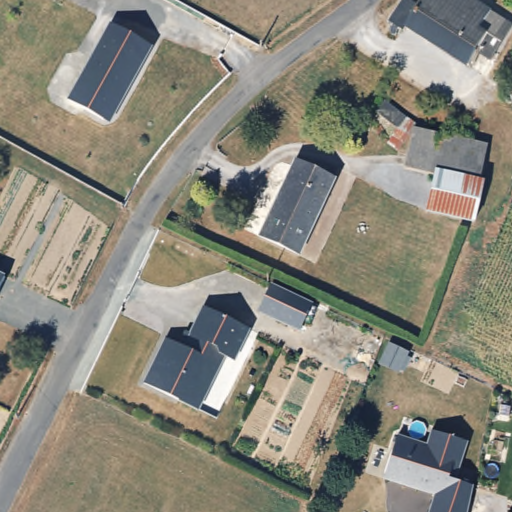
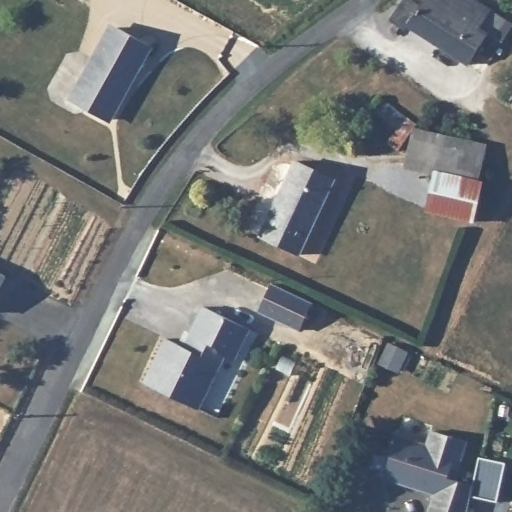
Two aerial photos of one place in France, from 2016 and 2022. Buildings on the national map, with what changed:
unchanged [(485,28),(493,34),(461,72),(402,24),(395,33),(382,21),(403,0),(405,0),(408,3),(416,9),(424,0),(494,0),(502,8),(485,28)]
unchanged [(102,119),(67,100),(85,69),(90,71),(115,26),(150,46),(112,114),(108,122),(102,119)]
unchanged [(413,125),(398,149),(386,140),(391,131),(368,116),(378,102),(413,125)]
unchanged [(489,152),(480,190),(434,179),(403,171),(409,137),(411,132),(489,152)]
unchanged [(297,166),(336,188),(296,261),(257,240),(297,166)]
unchanged [(480,190),(483,191),(474,227),(470,226),(426,215),(434,179),(480,190)]
unchanged [(2,279),(0,284),(0,278),(2,279)]
unchanged [(308,304),(295,330),(252,310),(267,283),(308,304)]
unchanged [(177,405),(141,388),(164,342),(182,350),(201,309),(248,332),(233,363),(222,359),(207,392),(197,414),(177,405)]
unchanged [(425,446),(430,431),(467,443),(457,481),(474,486),(466,512),(429,512),(434,496),(384,480),(397,438),(425,446)]

